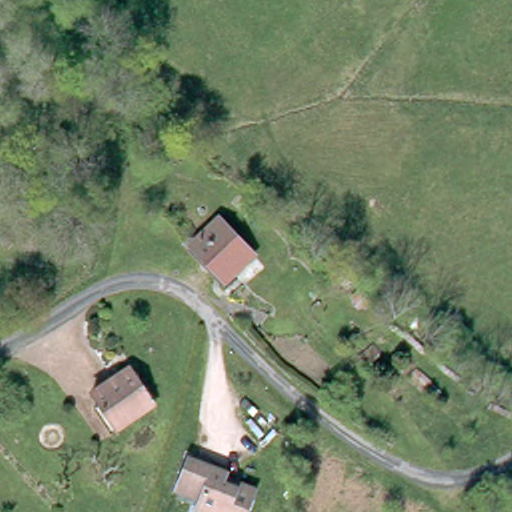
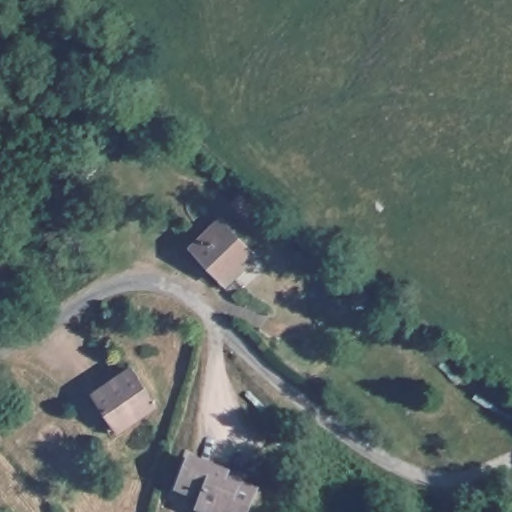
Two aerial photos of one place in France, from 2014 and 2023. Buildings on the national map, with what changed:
unchanged [(221,278),(188,245),(186,240),(212,214),(247,250),(221,278)]
unchanged [(117,426),(92,389),(130,364),(155,401),(117,426)]
unchanged [(197,503),(201,492),(177,483),(190,451),(226,466),(222,476),(237,482),(239,477),(254,483),(243,512),(194,512),(197,503)]

